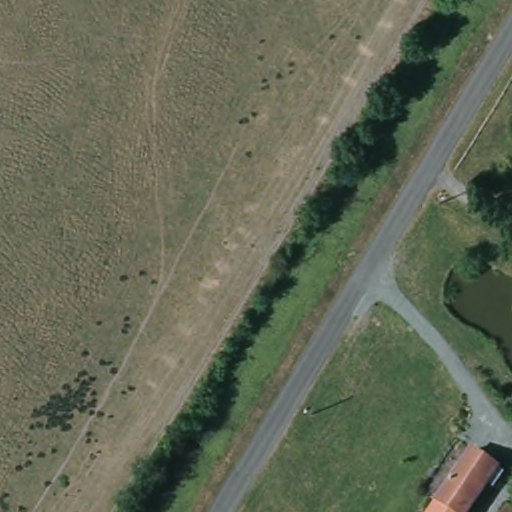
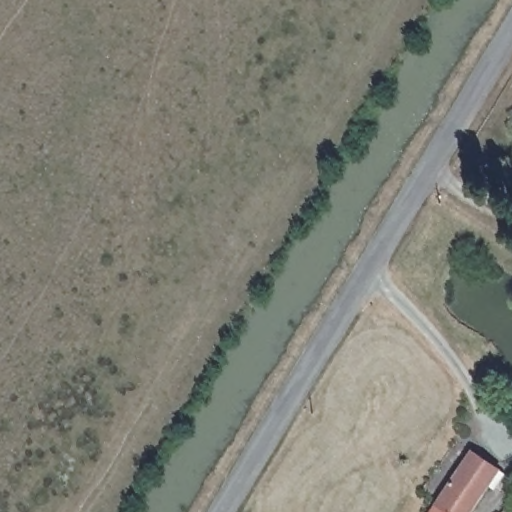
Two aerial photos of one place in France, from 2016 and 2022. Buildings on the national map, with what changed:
unchanged [(472,453),(498,470),(505,475),(494,490),(487,486),(470,512),(431,512),(472,453)]
unchanged [(511,508),(512,509),(512,512),(508,512),(511,508)]

